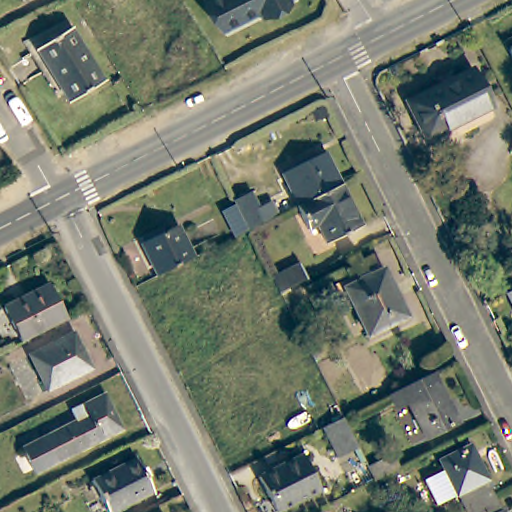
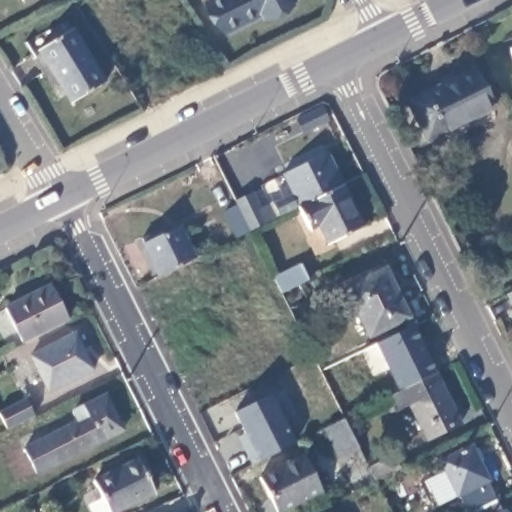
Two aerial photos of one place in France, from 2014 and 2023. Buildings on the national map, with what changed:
unchanged [(25,0),(22,1),(22,0),(25,0)]
unchanged [(290,5),(291,7),(260,24),(259,21),(225,38),(206,7),(219,0),(292,0),(293,2),(290,5)]
unchanged [(37,49),(70,27),(103,82),(70,102),(37,49)]
unchanged [(510,50),(512,49),(512,55),(510,50)]
unchanged [(412,96),(478,64),(498,104),(431,137),(412,96)]
unchanged [(298,205),(283,174),(325,154),(340,184),(298,205)]
unchanged [(361,227),(326,243),(317,225),(307,229),(296,206),(298,205),(340,184),(361,227)]
unchanged [(222,211),(236,204),(235,201),(250,193),(259,211),(272,204),(278,215),(249,230),(234,237),(222,211)]
unchanged [(135,236),(161,223),(166,232),(176,227),(193,258),(157,277),(135,236)]
unchanged [(272,277),(296,265),(304,281),(280,293),(272,277)]
unchanged [(345,288),(383,269),(403,310),(407,317),(367,336),(364,329),(345,288)]
unchanged [(508,301),(503,303),(496,288),(512,281),(512,309),(508,301)]
unchanged [(4,307),(49,283),(67,320),(22,342),(4,307)]
unchanged [(47,392),(29,355),(74,332),(92,369),(47,392)]
unchanged [(457,422),(425,438),(407,403),(396,408),(389,395),(434,372),(457,422)]
new [(257,460),(235,412),(270,392),(294,440),(257,460)]
unchanged [(35,473),(23,450),(76,423),(70,412),(105,395),(122,430),(35,473)]
unchanged [(342,418),(357,448),(338,458),(323,427),(342,418)]
unchanged [(439,459),(468,443),(495,497),(467,512),(465,512),(439,459)]
unchanged [(367,467),(391,454),(399,469),(374,482),(367,467)]
unchanged [(258,476),(303,455),(320,491),(276,512),(258,476)]
unchanged [(111,512),(108,512),(91,480),(136,457),(153,491),(111,512)]
unchanged [(495,497),(503,512),(467,512),(495,497)]

